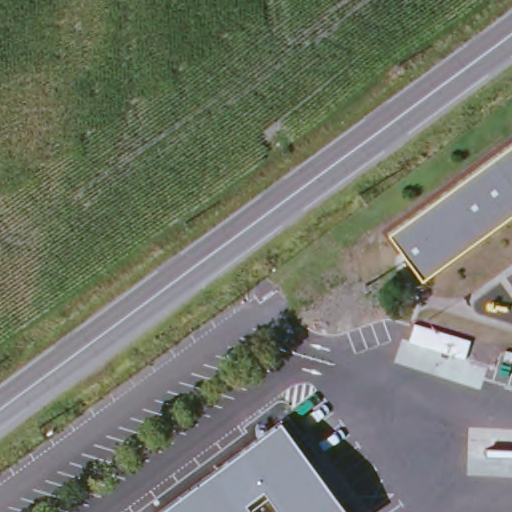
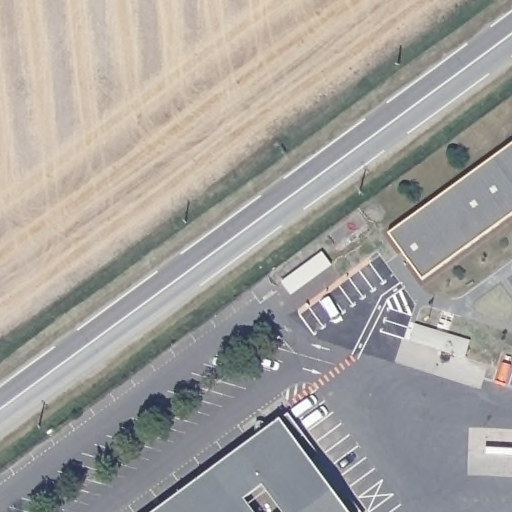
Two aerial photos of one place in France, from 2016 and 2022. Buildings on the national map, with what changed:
unchanged [(424,281),(391,236),(512,149),(512,218),(424,281)]
unchanged [(472,336),(467,353),(412,337),(417,320),(472,336)]
unchanged [(349,512),(155,512),(281,419),(349,512)]
unchanged [(484,464),(487,429),(512,431),(512,463),(484,464)]

